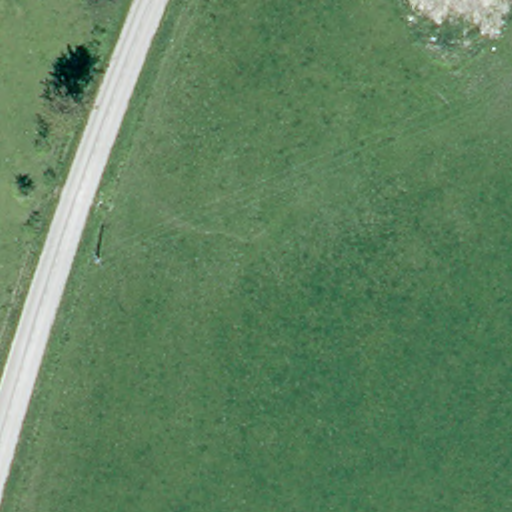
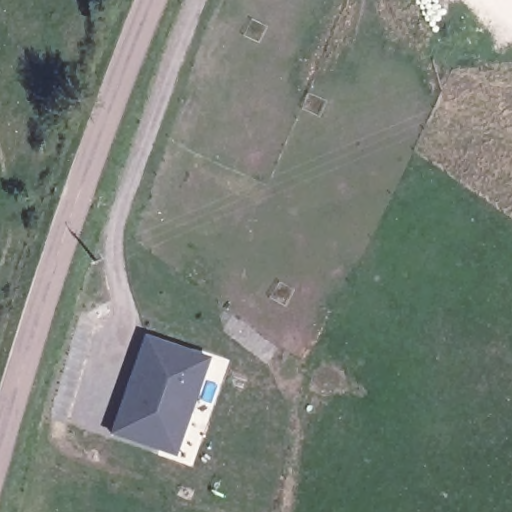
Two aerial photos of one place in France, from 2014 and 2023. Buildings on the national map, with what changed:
new [(175,456),(110,435),(144,335),(208,356),(175,456)]

